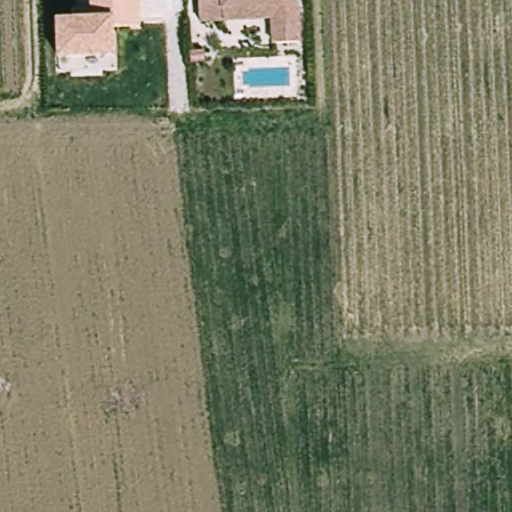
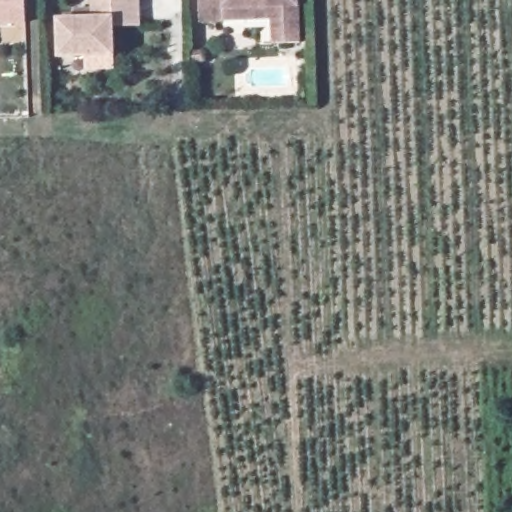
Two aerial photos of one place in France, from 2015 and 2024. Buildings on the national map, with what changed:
new [(0,27),(0,0),(26,0),(26,26),(0,27)]
unchanged [(92,17),(91,0),(138,0),(139,26),(113,27),(113,55),(58,57),(57,19),(92,17)]
unchanged [(199,0),(298,0),(300,42),(274,42),(273,17),(223,20),(200,21),(199,0)]
unchanged [(191,62),(191,52),(204,50),(205,61),(191,62)]

